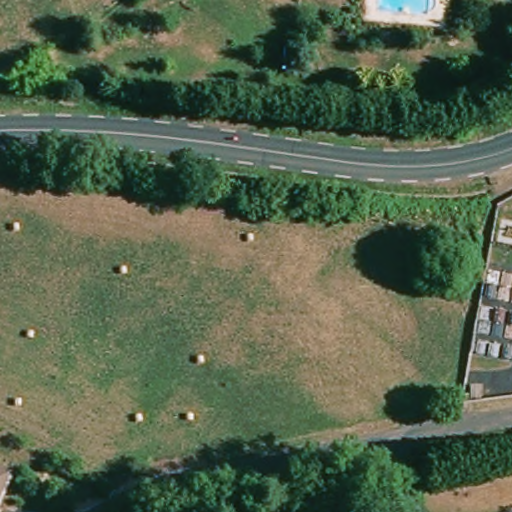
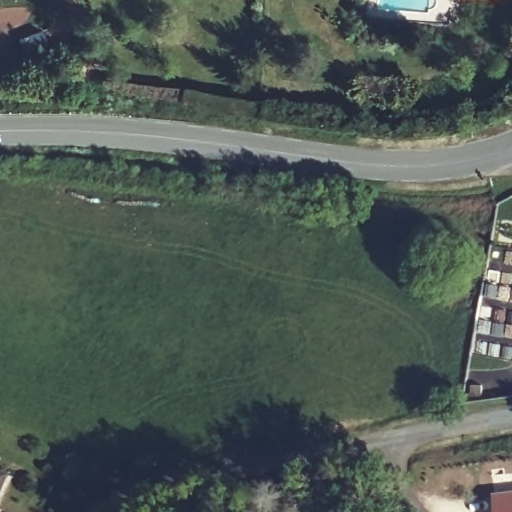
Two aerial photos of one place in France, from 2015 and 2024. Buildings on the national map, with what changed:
unchanged [(8,474),(0,492),(0,471),(8,474)]
new [(512,512),(495,512),(492,492),(512,490),(512,512)]

